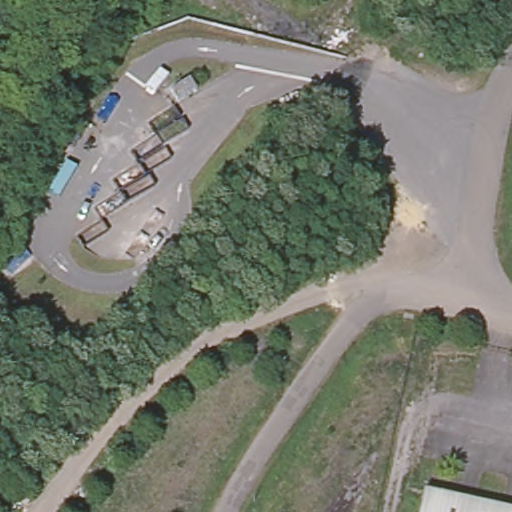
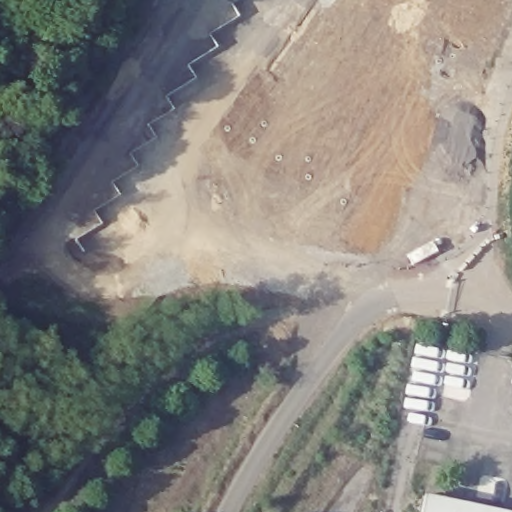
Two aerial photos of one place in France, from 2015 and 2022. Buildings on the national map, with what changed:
unchanged [(193,85),(200,95),(178,110),(172,100),(193,85)]
unchanged [(421,495),(502,512),(417,512),(421,495)]

